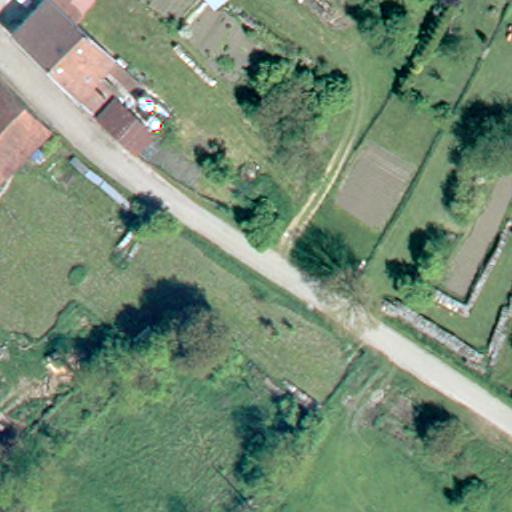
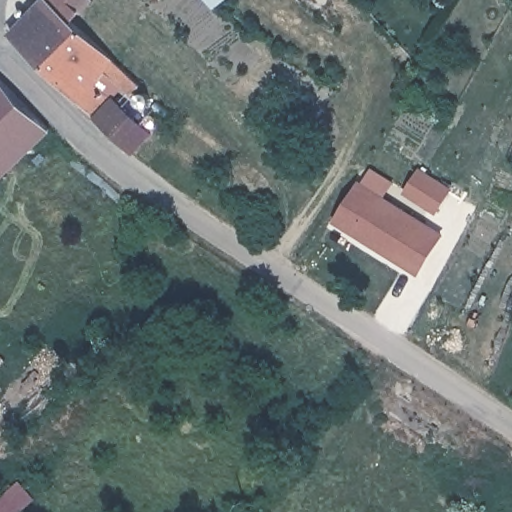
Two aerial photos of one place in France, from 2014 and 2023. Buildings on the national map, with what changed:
unchanged [(91,116),(81,107),(82,105),(10,32),(42,0),(97,0),(80,23),(112,57),(140,83),(131,92),(104,67),(94,79),(112,96),(93,115),(91,116)]
unchanged [(218,9),(209,0),(229,0),(218,9)]
unchanged [(2,162),(0,164),(0,79),(45,122),(2,162)]
unchanged [(112,96),(149,131),(132,151),(131,151),(116,136),(102,121),(93,115),(112,96)]
new [(446,234),(419,277),(332,222),(359,180),(446,234)]
new [(32,497),(16,512),(0,512),(0,495),(17,481),(32,497)]

